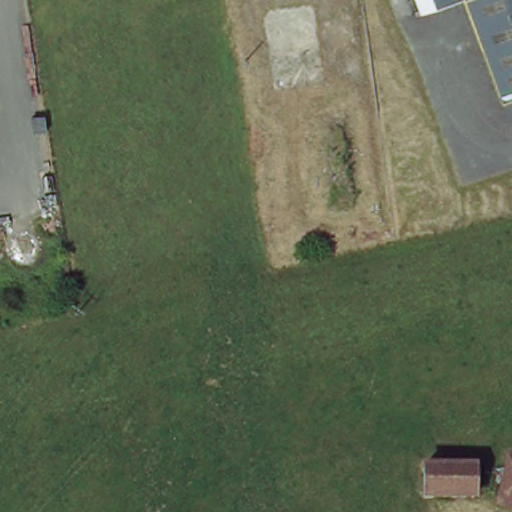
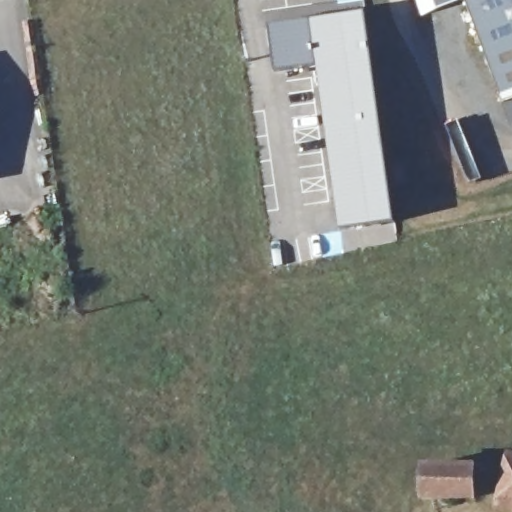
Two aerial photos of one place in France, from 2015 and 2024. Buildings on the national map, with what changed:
unchanged [(421,15),(417,0),(464,0),(421,15)]
unchanged [(500,102),(466,0),(512,0),(512,98),(500,102)]
new [(337,230),(316,65),(275,71),(268,25),(364,12),(394,221),(337,230)]
unchanged [(497,504),(509,460),(512,460),(512,508),(497,504)]
unchanged [(424,462),(470,465),(471,497),(425,497),(424,462)]

